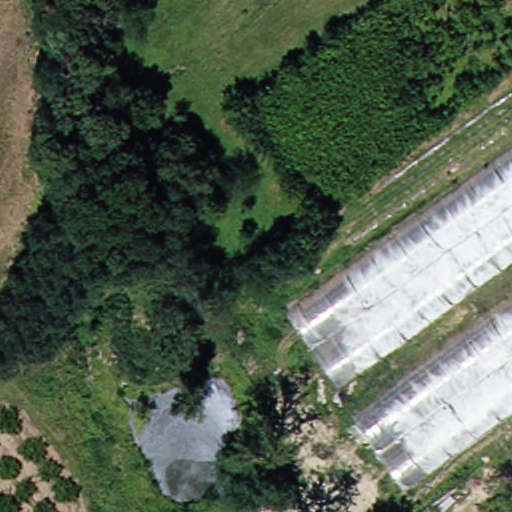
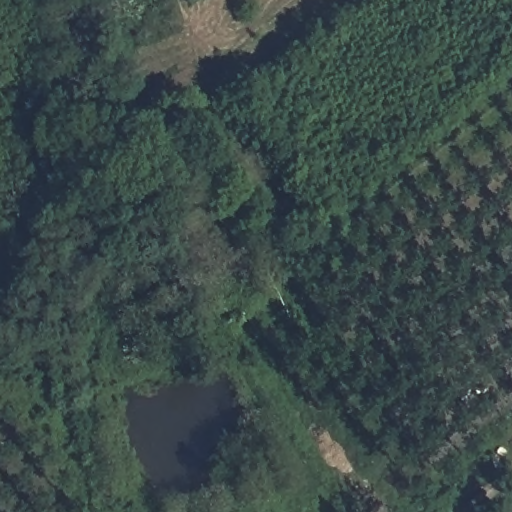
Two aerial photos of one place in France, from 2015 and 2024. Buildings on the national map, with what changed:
demolished [(512,258),(338,385),(291,314),(512,150),(512,258)]
demolished [(512,408),(405,485),(357,419),(512,309),(512,408)]

